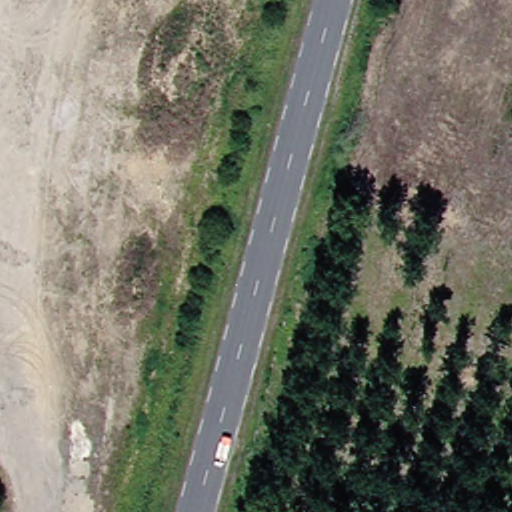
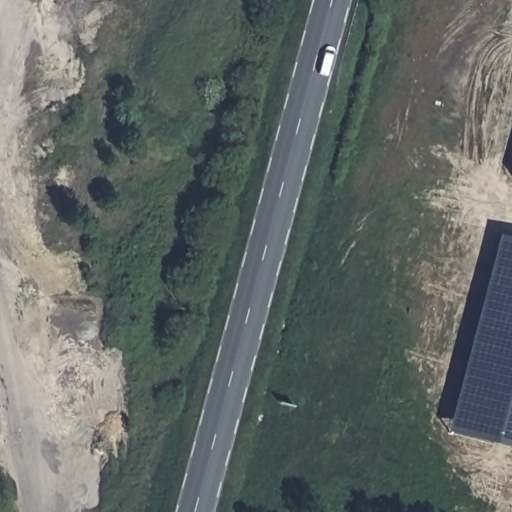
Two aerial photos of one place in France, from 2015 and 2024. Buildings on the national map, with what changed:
new [(449,435),(498,236),(512,240),(512,451),(449,435)]

